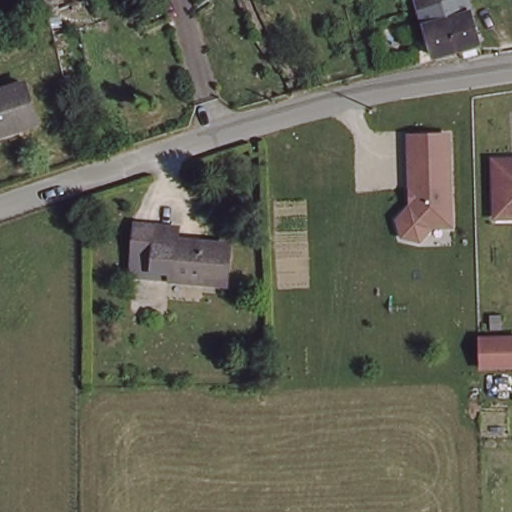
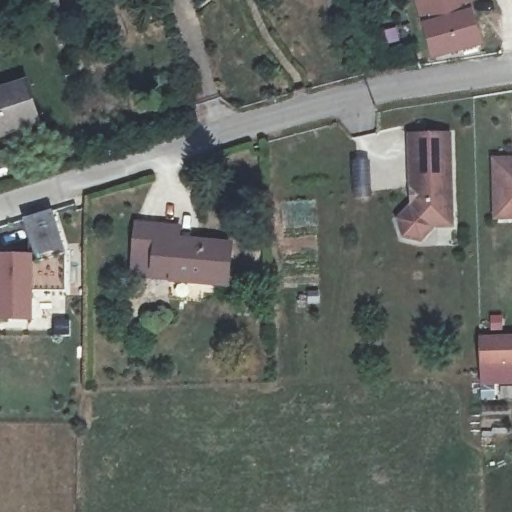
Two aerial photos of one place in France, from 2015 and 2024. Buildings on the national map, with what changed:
unchanged [(46,0),(52,0),(47,2),(46,0)]
unchanged [(440,60),(422,0),(465,0),(480,47),(440,60)]
unchanged [(28,83),(42,122),(0,136),(0,92),(28,83)]
unchanged [(455,227),(435,229),(421,244),(403,239),(397,219),(408,205),(406,135),(452,134),(455,227)]
unchanged [(498,158),(512,158),(512,215),(499,215),(498,158)]
new [(33,256),(24,221),(52,212),(65,254),(63,291),(33,291),(33,323),(0,323),(0,255),(33,256)]
unchanged [(157,261),(161,227),(183,230),(182,242),(233,247),(228,286),(178,280),(180,263),(157,261)]
unchanged [(481,332),(512,332),(512,372),(481,372),(481,332)]

